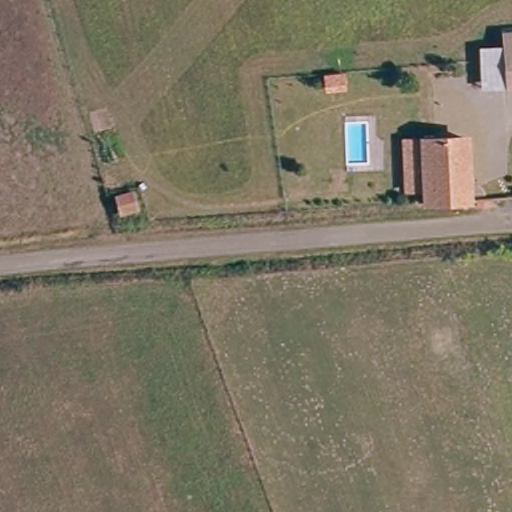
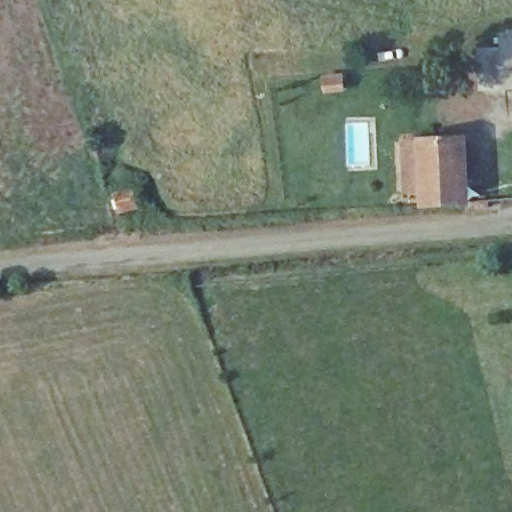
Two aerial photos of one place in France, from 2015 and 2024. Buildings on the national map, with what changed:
unchanged [(504,90),(502,33),(512,32),(512,90),(504,90)]
unchanged [(476,196),(431,202),(423,140),(436,139),(468,136),(476,196)]
unchanged [(139,230),(124,234),(121,218),(136,215),(139,230)]

